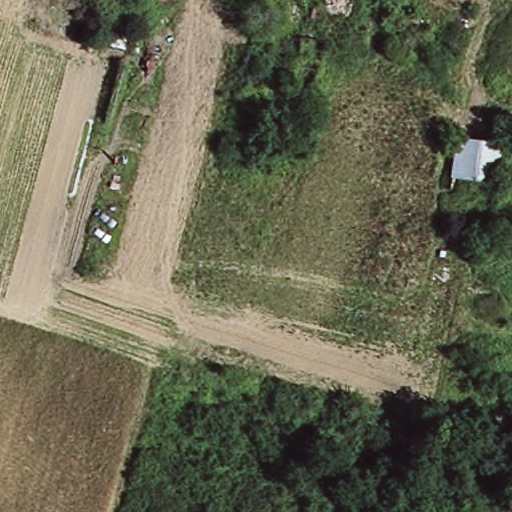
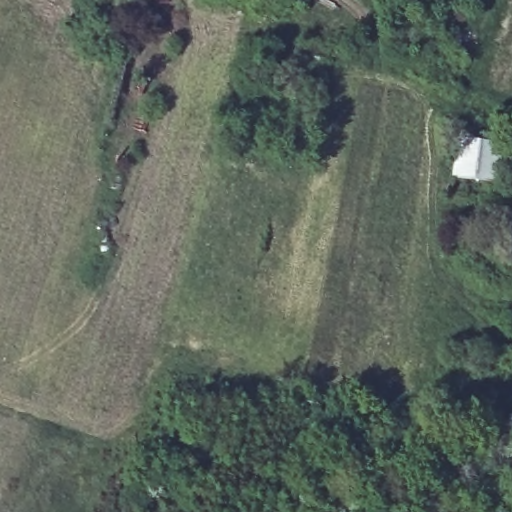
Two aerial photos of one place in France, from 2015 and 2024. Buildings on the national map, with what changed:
unchanged [(450,178),(457,138),(503,144),(497,184),(450,178)]

